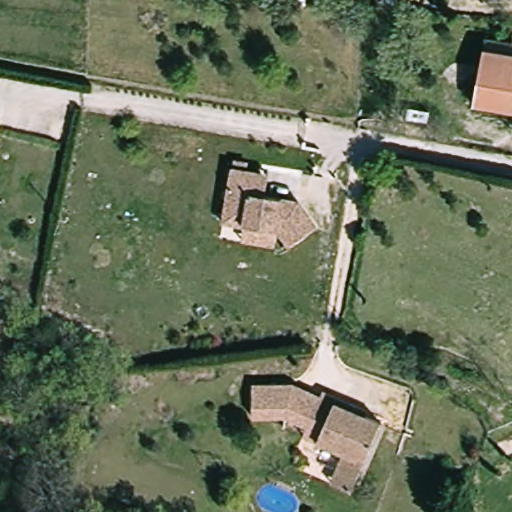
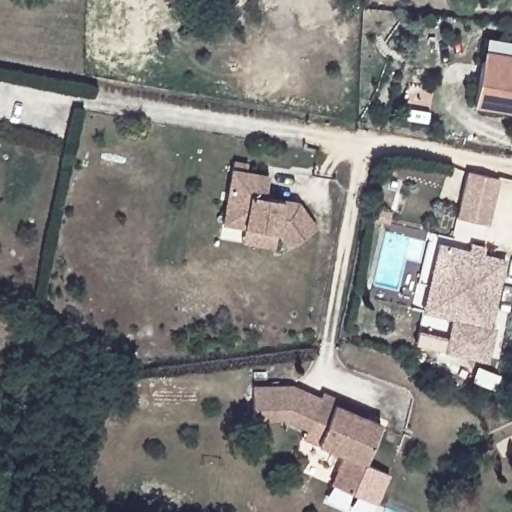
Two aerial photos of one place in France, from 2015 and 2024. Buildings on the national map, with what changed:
unchanged [(486,57),(488,48),(512,53),(512,105),(480,99),(486,57)]
unchanged [(249,224),(225,220),(234,170),(262,175),(258,195),(299,204),(318,224),(293,247),(277,229),(275,242),(246,237),(249,224)]
new [(466,172),(497,179),(488,224),(455,217),(466,172)]
new [(468,249),(470,243),(484,246),(482,254),(503,259),(488,327),(493,329),(486,359),(413,343),(416,330),(445,337),(450,318),(421,311),(437,242),(468,249)]
unchanged [(335,466),(341,452),(320,444),(300,437),(305,424),(279,417),(245,413),(249,382),(289,386),(383,423),(360,476),(353,491),(328,482),(335,466)]

